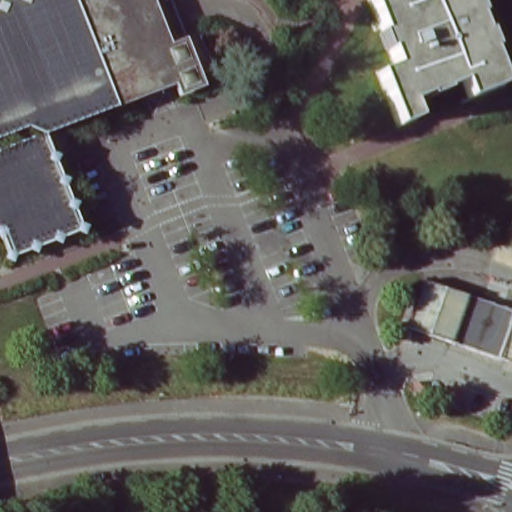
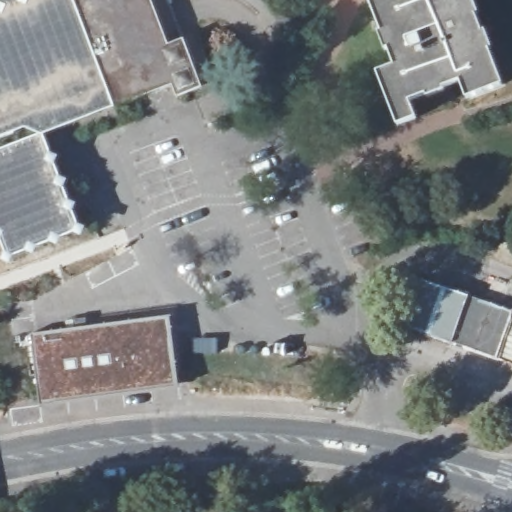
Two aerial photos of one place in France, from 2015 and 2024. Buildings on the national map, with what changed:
unchanged [(106,85),(85,94),(92,114),(49,132),(40,135),(78,234),(5,261),(0,248),(0,0),(73,0),(101,71),(106,85)]
unchanged [(73,0),(170,0),(171,4),(199,75),(181,82),(115,109),(114,105),(106,85),(101,71),(73,0)]
unchanged [(502,86),(483,93),(467,99),(462,85),(460,80),(428,92),(408,99),(415,119),(405,122),(395,126),(393,119),(375,72),(393,65),(392,63),(391,61),(367,0),(409,0),(410,0),(468,0),(484,38),(502,86)]
unchanged [(423,332),(440,285),(511,310),(494,357),(423,332)]
unchanged [(512,311),(512,364),(494,357),(511,310),(512,311)]
new [(31,335),(168,316),(178,389),(40,405),(31,335)]

